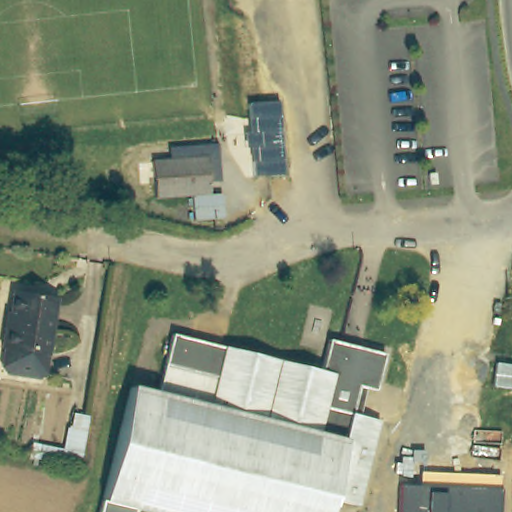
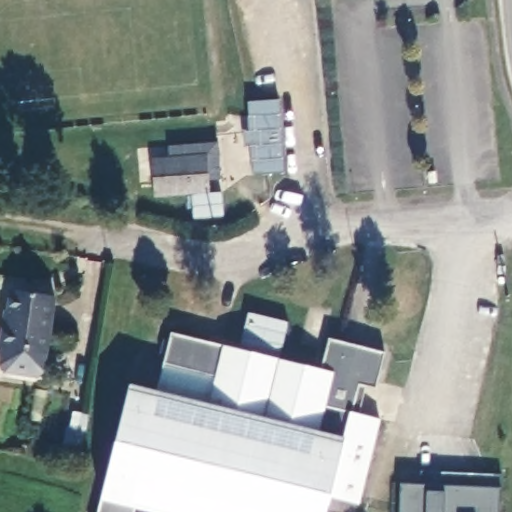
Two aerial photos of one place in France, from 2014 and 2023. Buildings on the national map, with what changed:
unchanged [(256,177),(253,147),(248,146),(247,132),(251,131),(249,103),(280,101),(285,175),(256,177)]
unchanged [(144,194),(141,157),(159,156),(158,144),(208,141),(210,178),(198,179),(199,190),(144,194)]
unchanged [(181,193),(211,191),(212,211),(182,213),(181,193)]
unchanged [(4,320),(11,284),(53,292),(43,348),(40,367),(34,371),(1,365),(0,364),(0,340),(0,325),(1,319),(4,320)]
unchanged [(163,333),(314,366),(320,334),(365,344),(377,347),(369,384),(362,382),(352,380),(346,407),(360,410),(374,413),(355,499),(353,499),(327,493),(322,512),(147,512),(134,509),(133,512),(97,512),(99,501),(123,387),(151,393),(163,333)]
unchanged [(389,417),(370,503),(355,499),(374,413),(389,417)]
unchanged [(62,443),(66,417),(85,421),(76,467),(28,457),(33,441),(62,443)]
unchanged [(420,485),(421,472),(502,475),(502,489),(501,512),(400,512),(402,485),(420,485)]

